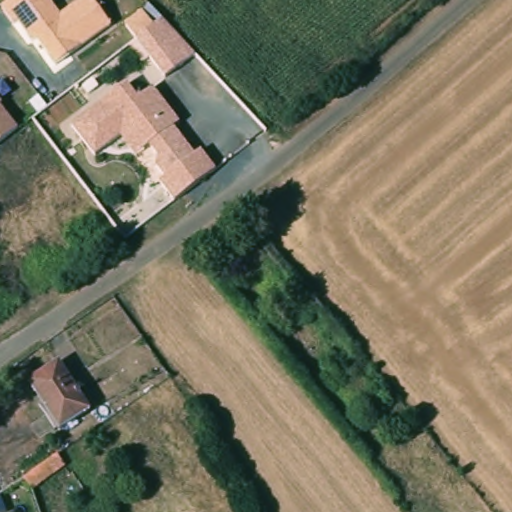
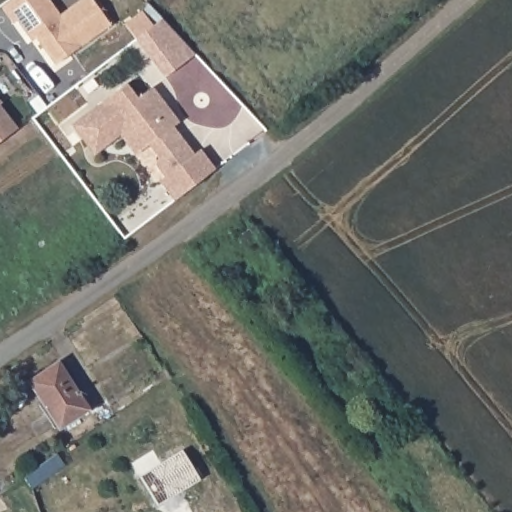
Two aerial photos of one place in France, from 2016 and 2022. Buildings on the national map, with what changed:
unchanged [(80,0),(94,0),(112,25),(56,66),(35,39),(32,41),(18,21),(13,25),(0,8),(10,0),(50,0),(60,14),(80,0)]
unchanged [(196,54),(166,77),(139,38),(165,19),(196,54)]
unchanged [(140,97),(154,88),(181,121),(175,126),(198,154),(204,150),(218,170),(177,199),(161,181),(168,176),(157,161),(163,158),(153,145),(138,154),(122,134),(96,155),(74,124),(129,81),(140,97)]
unchanged [(0,106),(0,99),(3,104),(0,106)]
unchanged [(0,142),(0,107),(17,128),(0,142)]
unchanged [(29,385),(56,366),(88,413),(61,433),(29,385)]
unchanged [(64,468),(30,491),(24,480),(57,457),(64,468)]
unchanged [(9,511),(7,512),(0,512),(0,497),(3,495),(9,511)]

